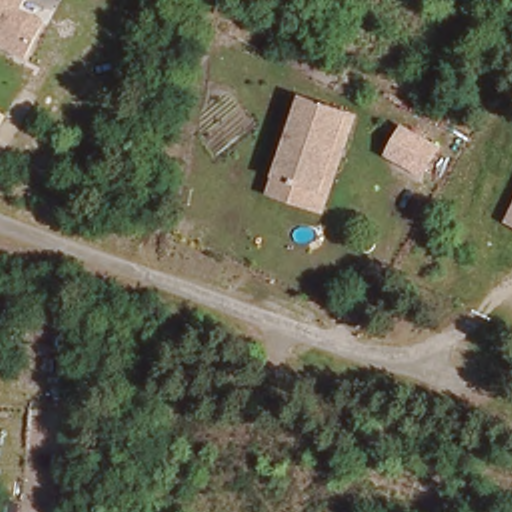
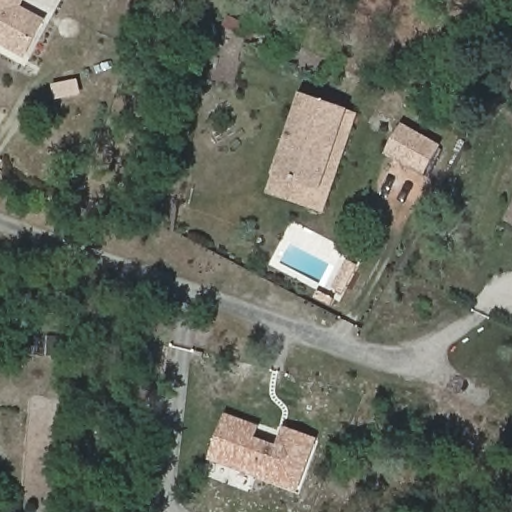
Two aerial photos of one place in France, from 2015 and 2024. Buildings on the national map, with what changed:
unchanged [(45,19),(26,56),(0,43),(0,0),(23,0),(20,6),(45,19)]
unchanged [(347,107),(357,112),(321,210),(269,190),(300,91),(347,107)]
unchanged [(426,176),(387,156),(403,125),(443,144),(426,176)]
unchanged [(506,218),(512,205),(512,221),(506,218)]
new [(250,423),(247,435),(273,444),(280,425),(309,435),(292,484),(207,455),(221,413),(250,423)]

